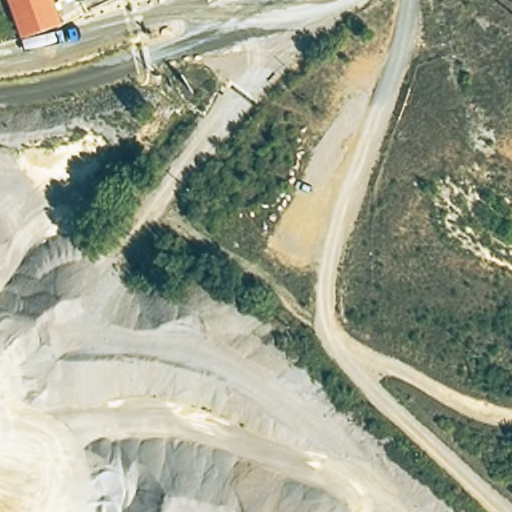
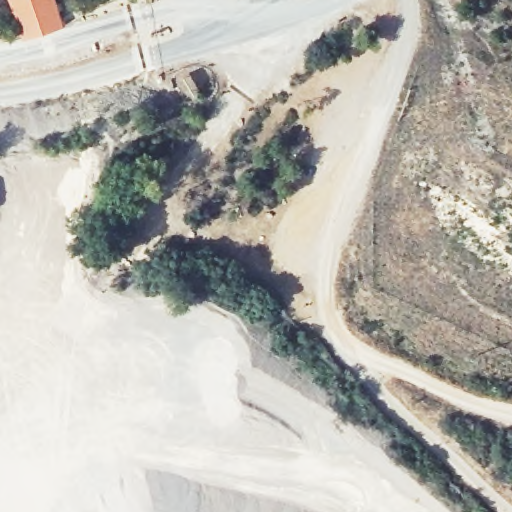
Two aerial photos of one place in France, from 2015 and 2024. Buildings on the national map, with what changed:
unchanged [(19,39),(5,0),(53,0),(60,27),(19,39)]

